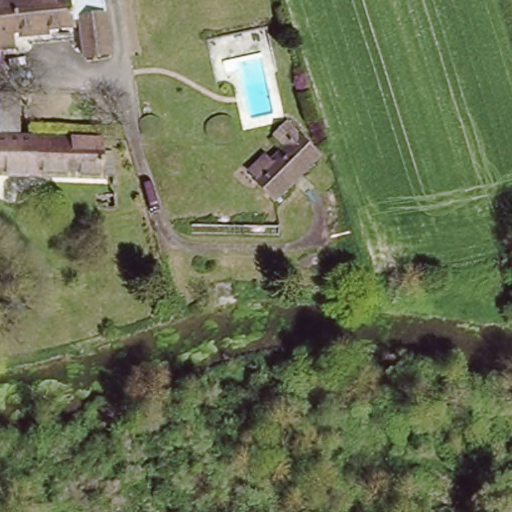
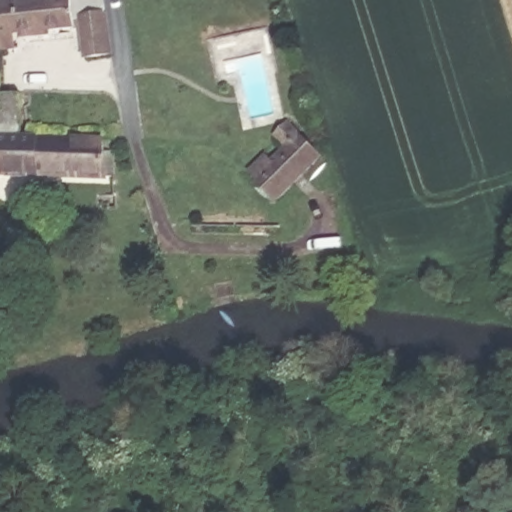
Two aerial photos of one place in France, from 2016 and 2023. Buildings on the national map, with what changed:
unchanged [(105,0),(117,53),(84,58),(80,28),(10,36),(11,52),(0,53),(0,0),(105,0)]
unchanged [(0,127),(0,99),(20,96),(27,132),(0,131),(0,127)]
unchanged [(291,141),(278,131),(287,121),(320,148),(278,199),(257,182),(291,141)]
unchanged [(103,139),(102,177),(0,174),(0,145),(0,136),(103,139)]

